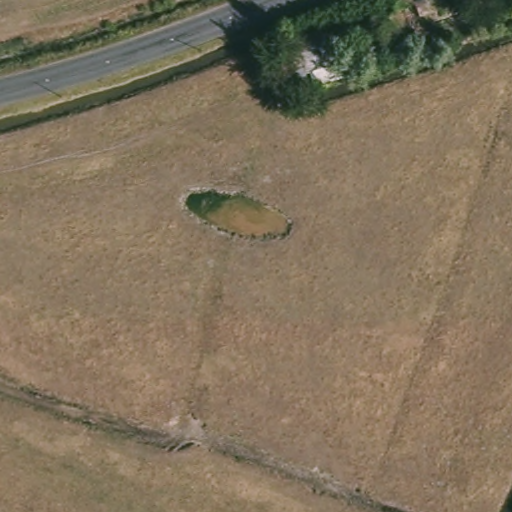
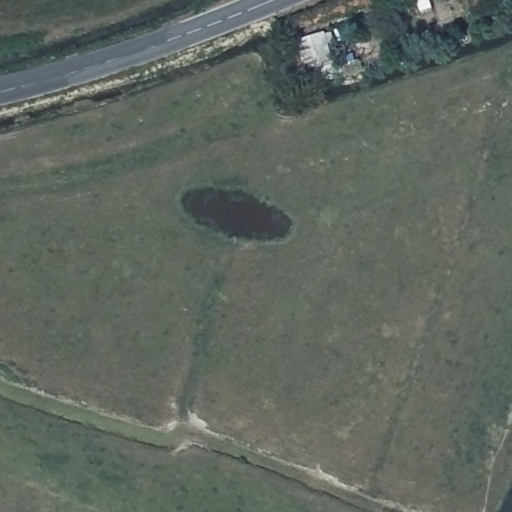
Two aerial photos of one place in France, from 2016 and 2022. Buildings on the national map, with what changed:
unchanged [(320,35),(328,65),(339,63),(344,82),(303,92),(292,45),(320,35)]

